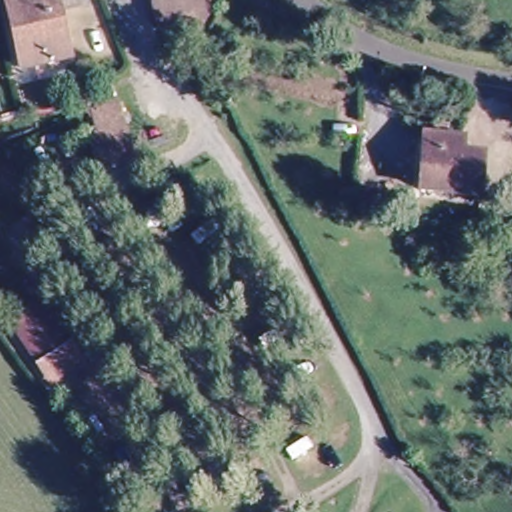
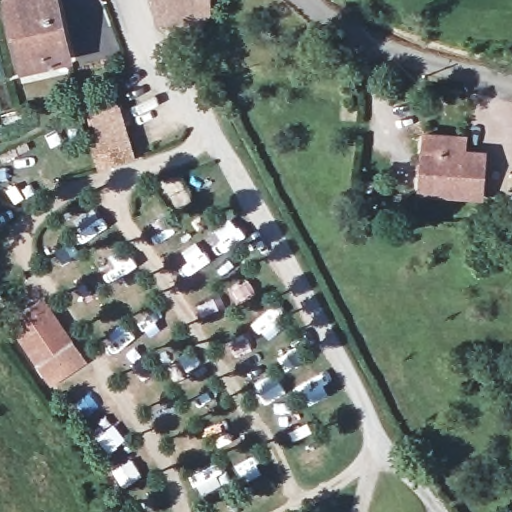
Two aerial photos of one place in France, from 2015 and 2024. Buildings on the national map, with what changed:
unchanged [(71,68),(25,77),(11,9),(13,9),(12,0),(57,0),(71,68)]
unchanged [(165,23),(156,23),(155,5),(153,5),(153,0),(208,0),(208,16),(196,17),(196,25),(189,25),(174,35),(165,23)]
unchanged [(108,106),(121,104),(136,157),(102,167),(95,144),(89,146),(86,138),(89,137),(83,114),(90,112),(89,109),(87,95),(104,91),(107,101),(108,106)]
unchanged [(461,161),(480,163),(476,203),(421,198),(426,143),(462,147),(461,161)]
unchanged [(83,361),(51,383),(8,323),(41,301),(83,361)]

